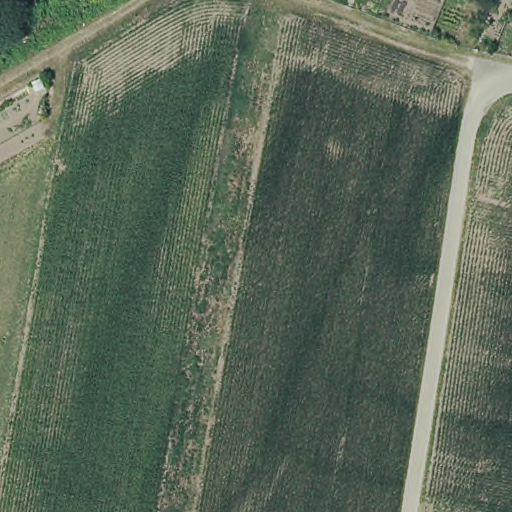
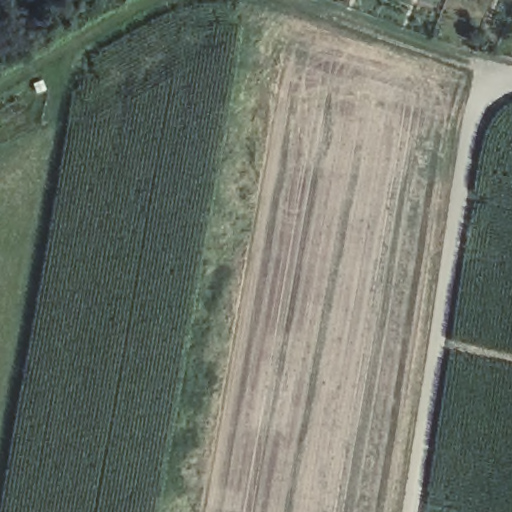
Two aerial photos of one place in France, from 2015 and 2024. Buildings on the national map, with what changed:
[]

